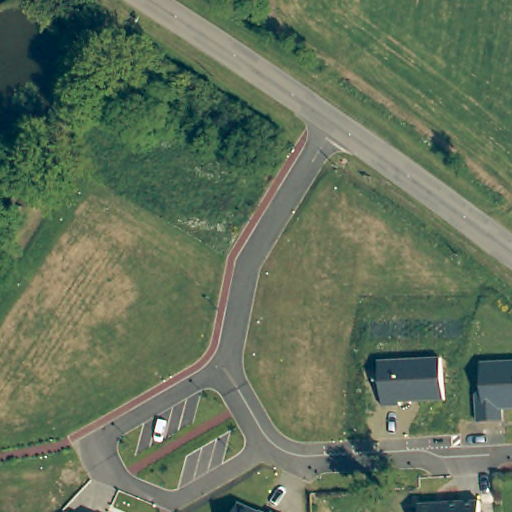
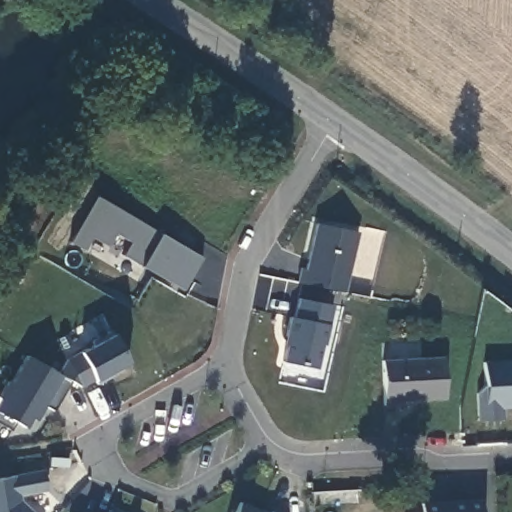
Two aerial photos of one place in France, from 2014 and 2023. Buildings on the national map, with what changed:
new [(143,266),(91,238),(83,249),(69,241),(95,195),(160,234),(203,258),(183,291),(143,266)]
new [(358,232),(345,291),(297,281),(299,268),(305,269),(315,223),(358,232)]
new [(334,305),(319,370),(282,362),(286,345),(283,344),(289,316),(297,299),(334,305)]
new [(130,361),(94,380),(80,388),(68,379),(55,409),(47,405),(38,422),(34,420),(28,430),(12,421),(10,430),(0,424),(0,401),(25,356),(57,372),(66,359),(80,352),(112,335),(130,361)]
unchanged [(444,398),(399,401),(399,404),(382,405),(380,360),(442,357),(444,398)]
unchanged [(502,419),(477,421),(476,393),(483,385),(482,361),(512,360),(512,406),(501,407),(502,419)]
new [(19,495),(20,502),(31,512),(0,512),(0,478),(42,470),(47,490),(19,495)]
unchanged [(477,498),(478,512),(418,512),(417,502),(477,498)]
unchanged [(259,512),(233,512),(238,502),(259,512)]

